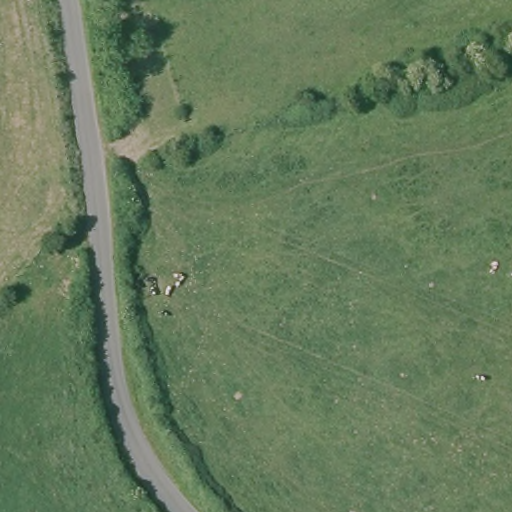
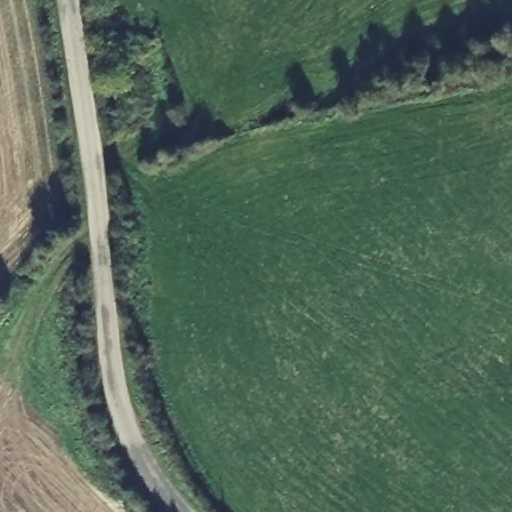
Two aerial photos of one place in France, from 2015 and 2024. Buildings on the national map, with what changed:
[]

